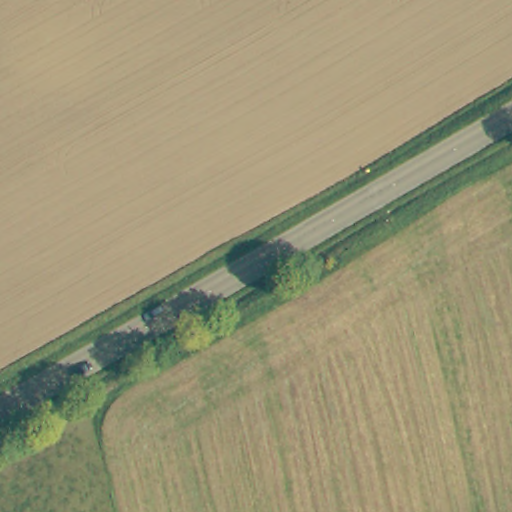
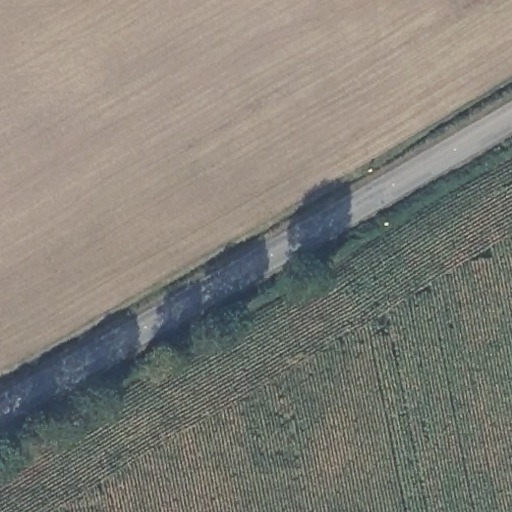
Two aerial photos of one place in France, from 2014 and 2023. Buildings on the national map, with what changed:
[]

